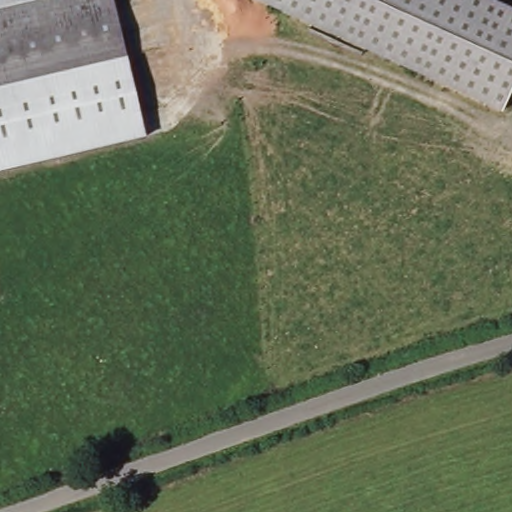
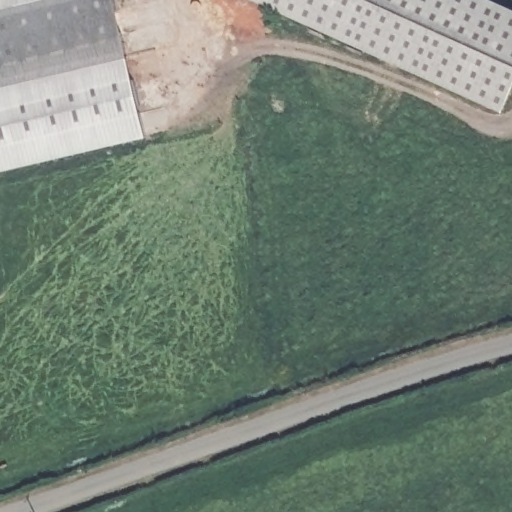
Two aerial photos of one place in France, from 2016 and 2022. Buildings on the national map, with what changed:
unchanged [(112,0),(126,55),(0,87),(0,0),(112,0)]
unchanged [(512,80),(501,107),(248,0),(489,0),(512,10),(512,80)]
unchanged [(126,55),(143,137),(0,168),(0,87),(126,55)]

